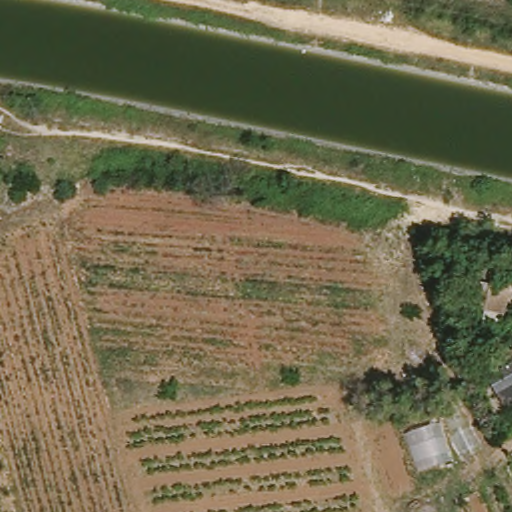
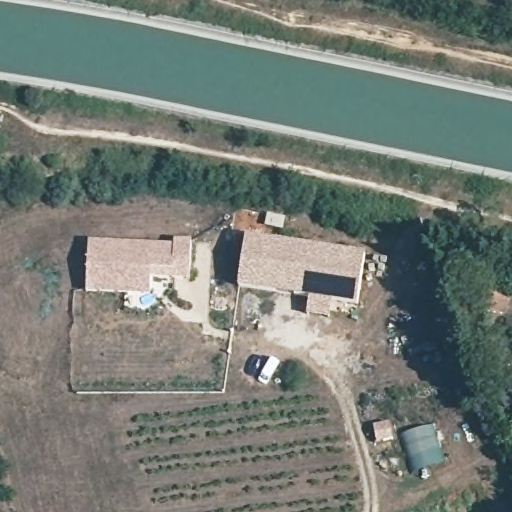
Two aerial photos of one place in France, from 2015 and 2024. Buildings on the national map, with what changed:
new [(357,308),(236,289),(245,236),(363,254),(357,308)]
new [(86,292),(89,241),(175,245),(174,239),(190,240),(188,278),(148,275),(147,294),(86,292)]
unchanged [(510,314),(492,310),(481,308),(486,281),(497,283),(512,286),(512,301),(510,314)]

